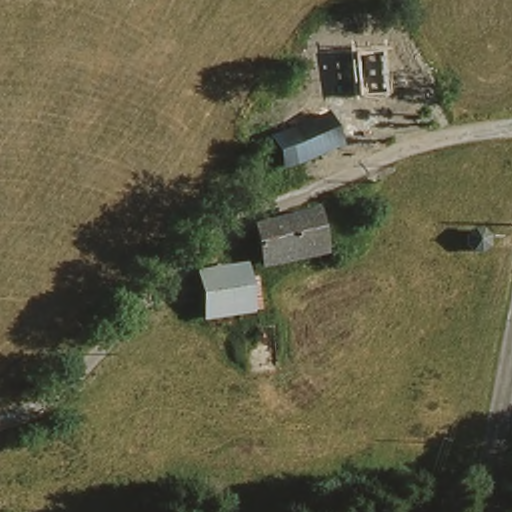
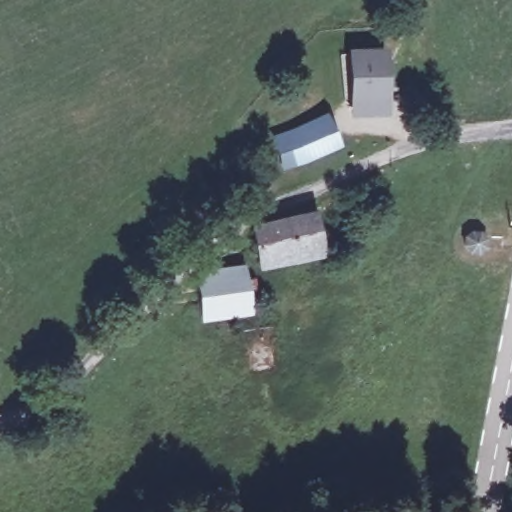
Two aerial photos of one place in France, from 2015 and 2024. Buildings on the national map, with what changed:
demolished [(381,45),(380,87),(357,86),(358,45),(381,45)]
new [(348,47),(387,47),(388,116),(350,117),(348,47)]
unchanged [(325,112),(337,144),(285,165),(272,133),(308,119),(325,112)]
unchanged [(321,248),(262,258),(257,223),(315,212),(321,248)]
unchanged [(463,230),(493,237),(488,255),(460,246),(463,230)]
unchanged [(247,271),(248,312),(200,313),(198,273),(247,271)]

